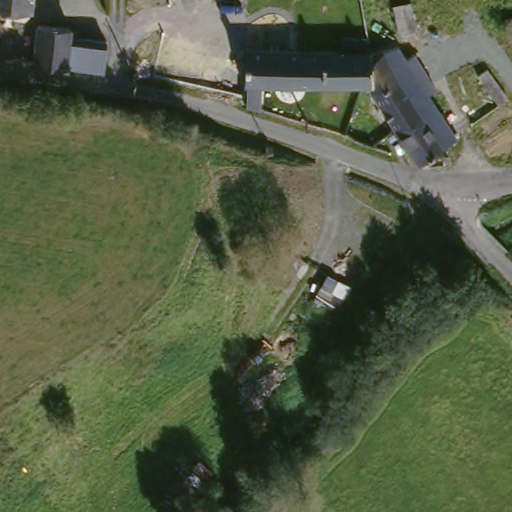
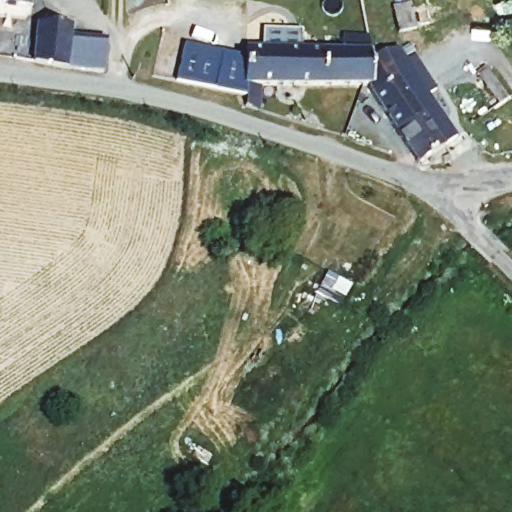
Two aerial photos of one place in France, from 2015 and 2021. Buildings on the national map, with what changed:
unchanged [(30,0),(29,10),(0,5),(0,0),(30,0)]
unchanged [(411,27),(413,33),(396,40),(387,14),(403,7),(411,27)]
unchanged [(109,41),(106,60),(105,74),(34,63),(34,50),(35,25),(62,28),(62,35),(109,41)]
unchanged [(390,35),(433,100),(396,125),(371,85),(370,83),(355,60),(370,50),(390,35)]
new [(244,93),(244,95),(178,80),(185,45),(245,57),(244,93)]
unchanged [(318,81),(265,80),(263,101),(262,108),(244,100),(244,93),(245,46),(317,48),(318,81)]
unchanged [(370,83),(318,81),(317,48),(360,48),(370,50),(355,60),(370,83)]
unchanged [(455,135),(418,159),(396,125),(433,100),(455,135)]

